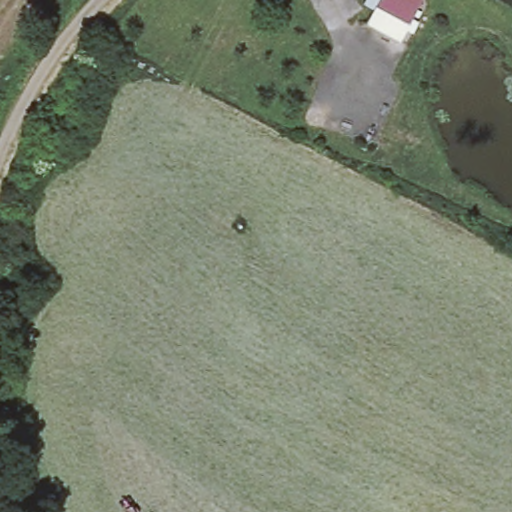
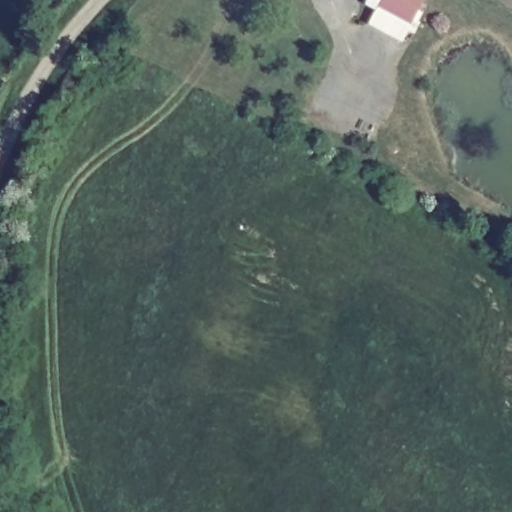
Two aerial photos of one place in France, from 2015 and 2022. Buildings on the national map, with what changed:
unchanged [(421,20),(415,34),(408,30),(402,42),(366,24),(376,3),(380,4),(382,0),(423,0),(414,18),(421,20)]

